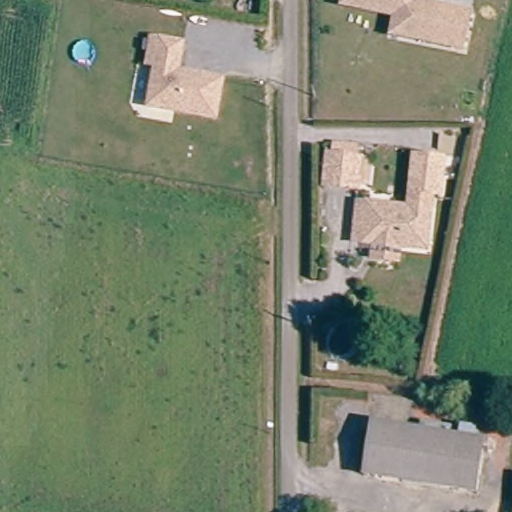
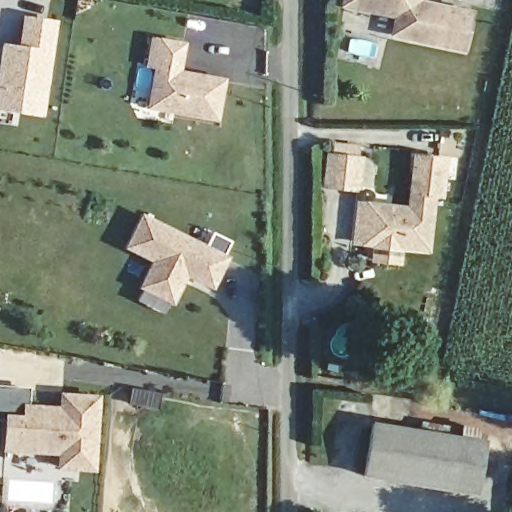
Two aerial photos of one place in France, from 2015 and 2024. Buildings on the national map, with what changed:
unchanged [(464,47),(395,30),(400,12),(358,0),(423,0),(473,13),(464,47)]
new [(16,45),(22,14),(44,17),(40,47),(49,48),(49,43),(54,44),(41,117),(0,110),(0,49),(1,42),(16,45)]
unchanged [(148,109),(153,70),(147,69),(152,39),(189,43),(185,73),(227,81),(220,123),(148,109)]
unchanged [(338,140),(356,141),(360,142),(358,160),(363,160),(361,189),(330,187),(332,158),(336,158),(338,140)]
new [(440,197),(417,192),(413,211),(408,210),(413,156),(448,158),(446,200),(440,197)]
unchanged [(413,211),(417,192),(440,197),(427,255),(355,241),(363,201),(413,211)]
new [(154,217),(237,257),(224,285),(198,272),(184,301),(154,287),(166,260),(139,247),(154,217)]
new [(30,385),(29,402),(40,402),(57,403),(65,404),(65,390),(101,392),(97,463),(63,462),(64,442),(52,442),(47,446),(9,443),(10,412),(0,412),(0,382),(30,385)]
unchanged [(368,473),(377,419),(464,433),(455,487),(368,473)]
unchanged [(475,491),(455,487),(464,433),(485,437),(475,491)]

